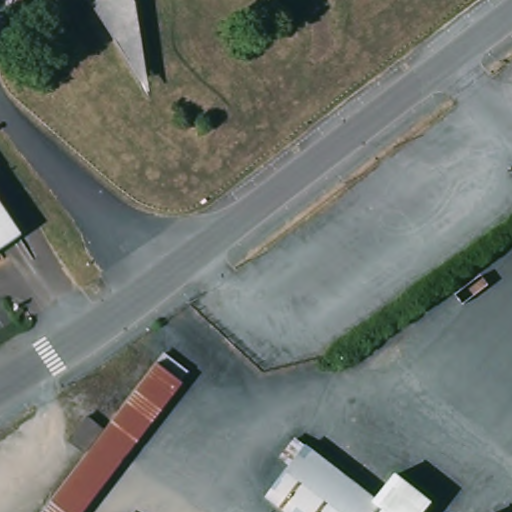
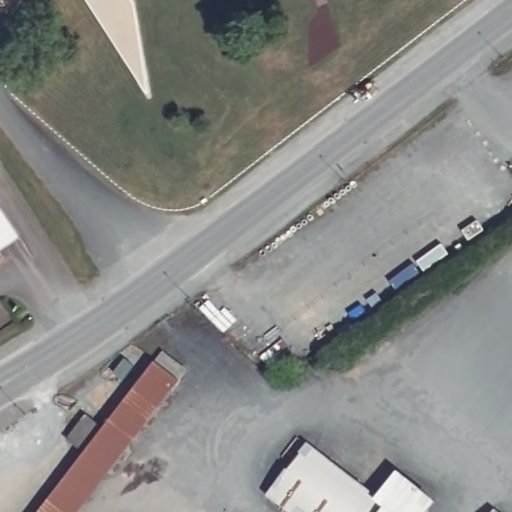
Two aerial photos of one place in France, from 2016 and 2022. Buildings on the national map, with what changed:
unchanged [(0,18),(0,0),(17,0),(16,2),(0,18)]
unchanged [(137,79),(87,0),(126,0),(131,7),(137,79)]
unchanged [(16,237),(0,248),(0,213),(16,237)]
unchanged [(79,512),(39,512),(158,357),(183,376),(79,512)]
unchanged [(429,502),(421,512),(286,512),(268,498),(294,466),(284,460),(300,440),(309,447),(381,505),(401,480),(429,502)]

